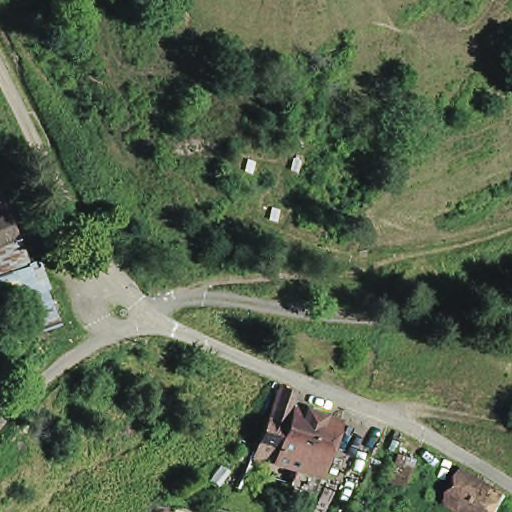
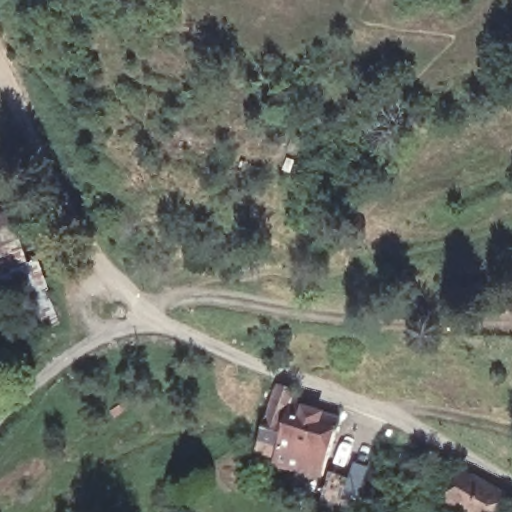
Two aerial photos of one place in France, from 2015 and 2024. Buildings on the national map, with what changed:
unchanged [(7,215),(15,240),(0,247),(0,218),(7,215)]
unchanged [(45,294),(54,329),(25,335),(14,304),(0,307),(0,251),(18,242),(45,294)]
unchanged [(270,466),(265,465),(263,472),(250,468),(252,461),(254,452),(255,449),(272,389),(290,395),(287,408),(302,413),(334,424),(322,466),(320,470),(320,473),(317,479),(270,465),(270,466)]
unchanged [(396,452),(413,458),(405,486),(387,481),(392,464),(394,461),(396,452)]
unchanged [(457,477),(467,482),(482,490),(510,505),(506,512),(446,512),(440,508),(457,477)]

